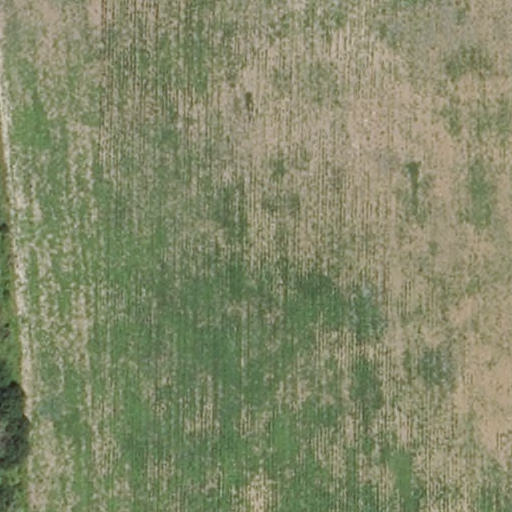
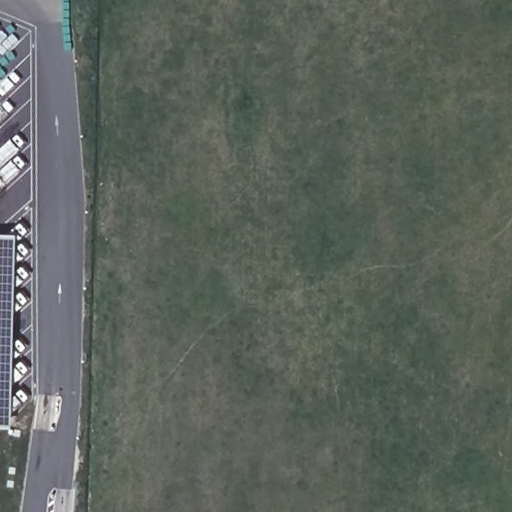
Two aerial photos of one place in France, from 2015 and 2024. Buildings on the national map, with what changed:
new [(15,235),(17,426),(0,428),(0,235),(15,235)]

